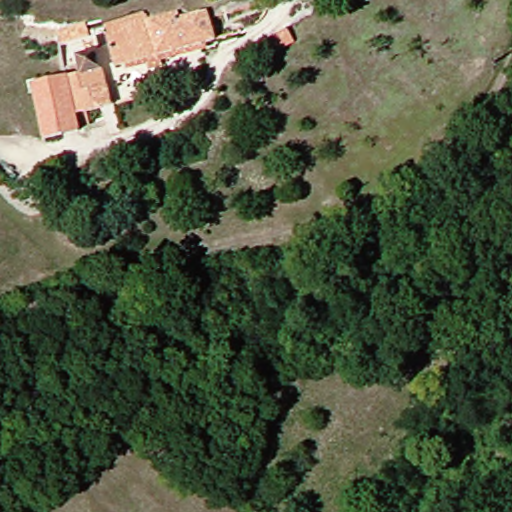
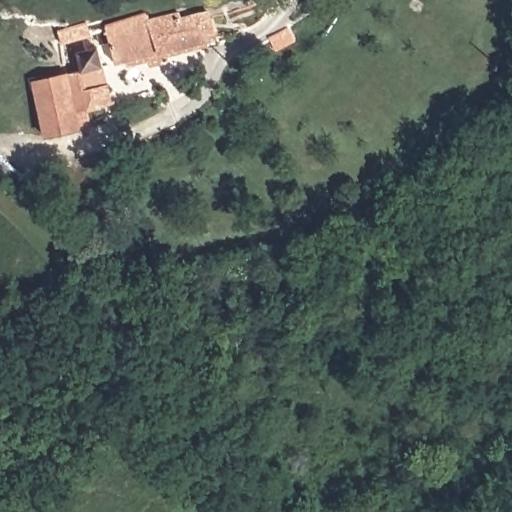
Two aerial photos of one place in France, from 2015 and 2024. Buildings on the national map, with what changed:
unchanged [(138,17),(142,22),(171,15),(178,20),(203,12),(209,40),(112,65),(105,45),(102,26),(138,17)]
unchanged [(280,52),(274,41),(290,30),(298,42),(280,52)]
unchanged [(75,70),(72,54),(95,49),(107,103),(71,113),(75,130),(38,140),(26,84),(75,70)]

